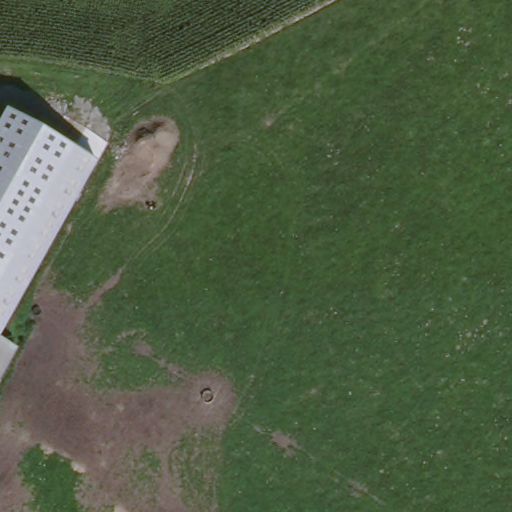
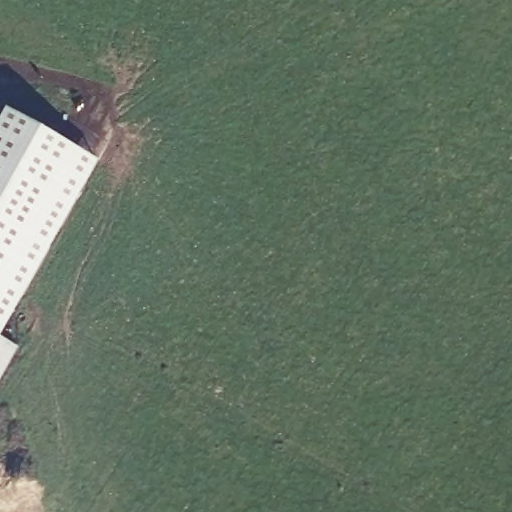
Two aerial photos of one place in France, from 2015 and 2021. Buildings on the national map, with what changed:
unchanged [(7,110),(98,162),(0,340),(0,122),(7,110)]
unchanged [(14,355),(0,380),(0,346),(14,355)]

